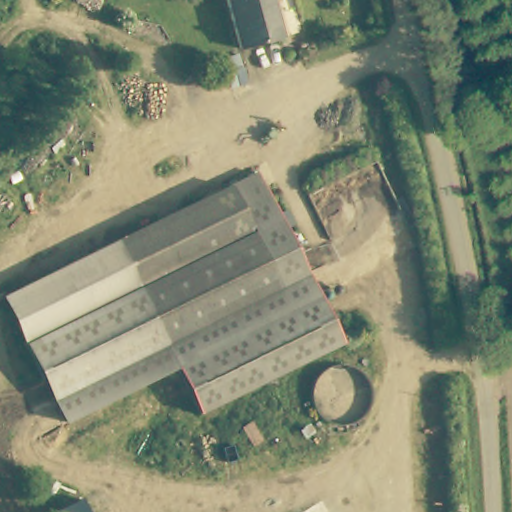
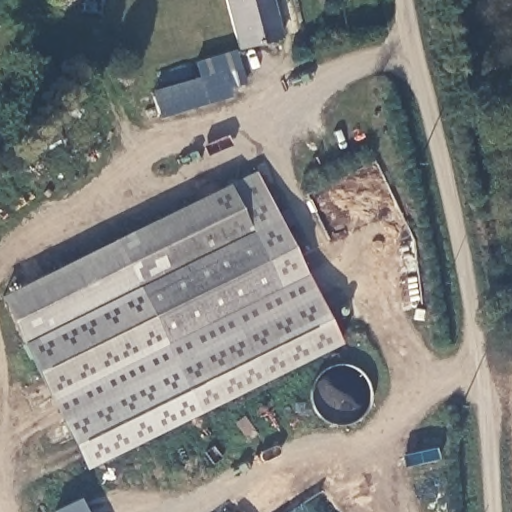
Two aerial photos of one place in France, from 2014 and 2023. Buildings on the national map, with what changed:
demolished [(62,2),(62,0),(107,0),(105,11),(62,2)]
unchanged [(245,47),(232,0),(275,0),(284,37),(245,47)]
new [(195,61),(236,50),(241,68),(245,67),(247,83),(231,87),(227,72),(225,73),(231,96),(161,117),(152,90),(199,76),(195,61)]
unchanged [(340,338),(277,370),(199,408),(116,241),(194,202),(257,170),(340,338)]
unchanged [(179,368),(65,424),(0,296),(116,241),(179,368)]
new [(65,424),(179,368),(199,408),(202,413),(87,470),(65,424)]
demolished [(327,370),(333,371),(339,373),(344,377),(348,382),(352,388),(353,394),(354,400),(353,407),(352,413),(348,418),(343,423),(338,427),(332,430),(326,431),(320,431),(313,430),(307,427),(302,423),(298,418),(295,412),(293,406),(292,400),(293,393),(295,387),(298,382),(302,377),(308,373),(314,371),(320,370),(327,370)]
unchanged [(47,511),(79,496),(87,512),(47,512),(47,511)]

